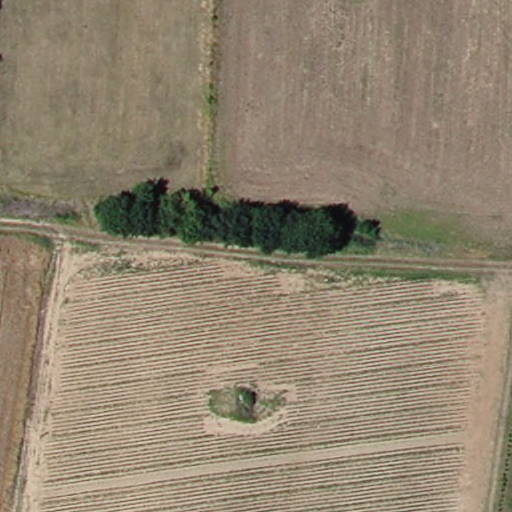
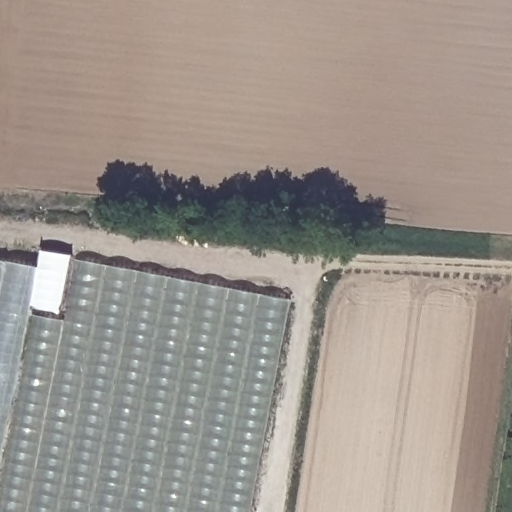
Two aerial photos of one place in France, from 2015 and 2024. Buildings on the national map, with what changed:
new [(40,244),(0,497),(0,239),(40,244)]
new [(273,512),(24,512),(57,272),(302,282),(273,512)]

